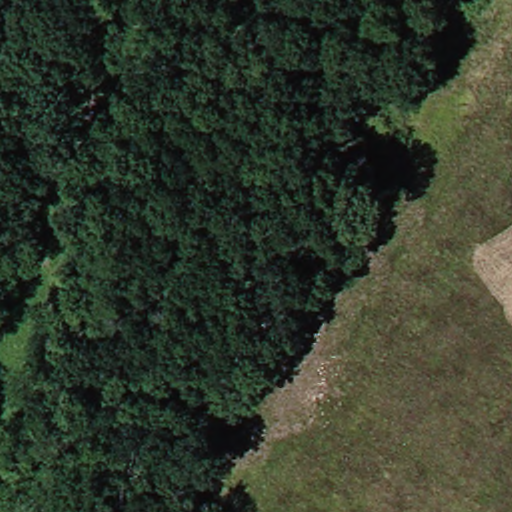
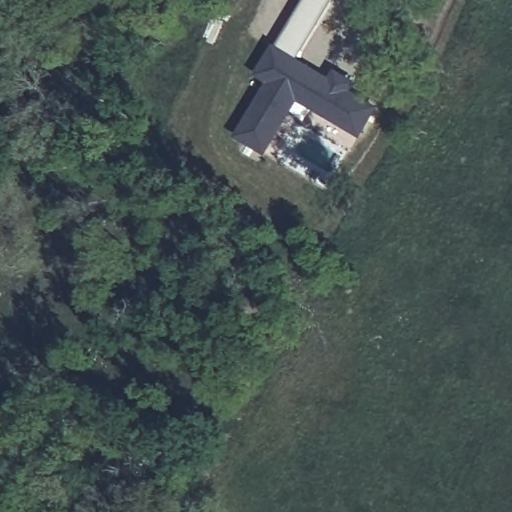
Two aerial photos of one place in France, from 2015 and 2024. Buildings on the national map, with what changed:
new [(305,0),(331,0),(293,63),(275,52),(305,0)]
new [(293,63),(331,84),(336,76),(347,82),(341,91),(370,107),(356,131),(292,94),(260,150),(237,137),(270,81),(260,75),(275,52),(293,63)]

